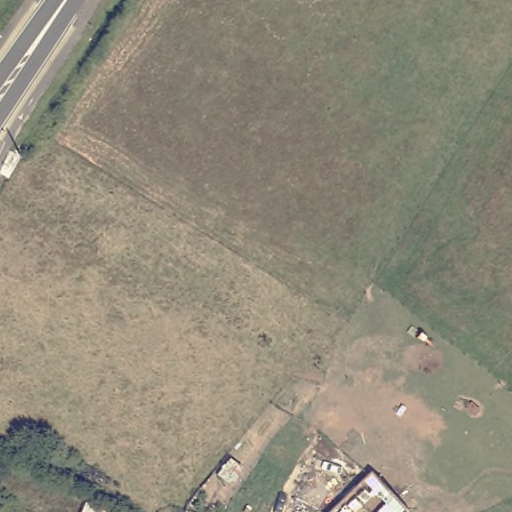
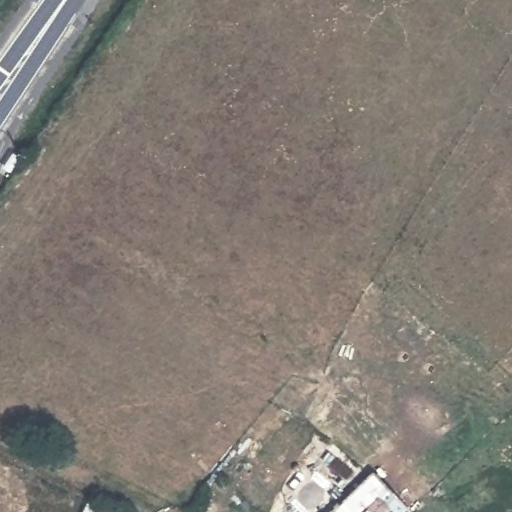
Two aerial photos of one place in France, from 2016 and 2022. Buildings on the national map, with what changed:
unchanged [(410,506),(404,512),(328,512),(370,468),(410,506)]

